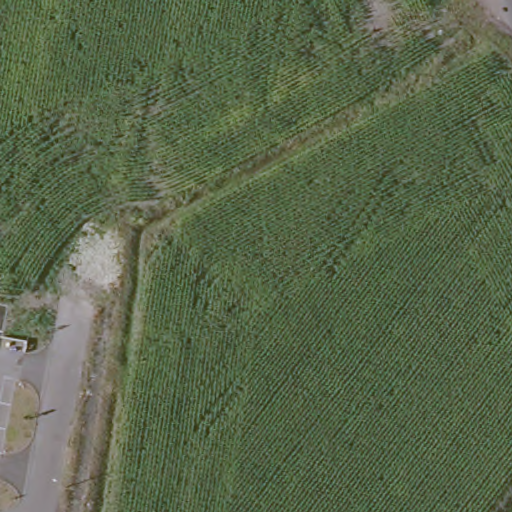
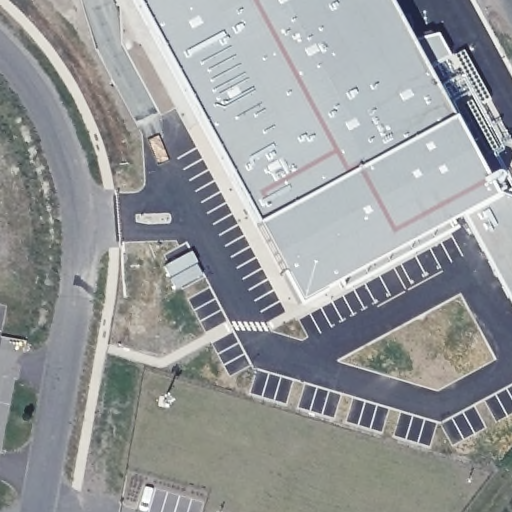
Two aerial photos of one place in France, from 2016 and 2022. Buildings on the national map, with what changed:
new [(139,0),(396,0),(505,192),(512,190),(512,306),(460,219),(304,301),(139,0)]

